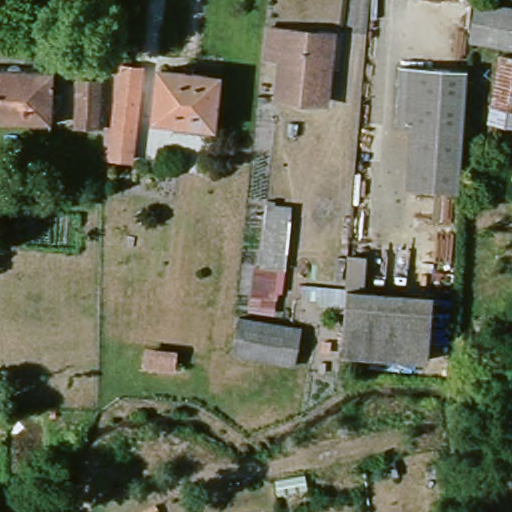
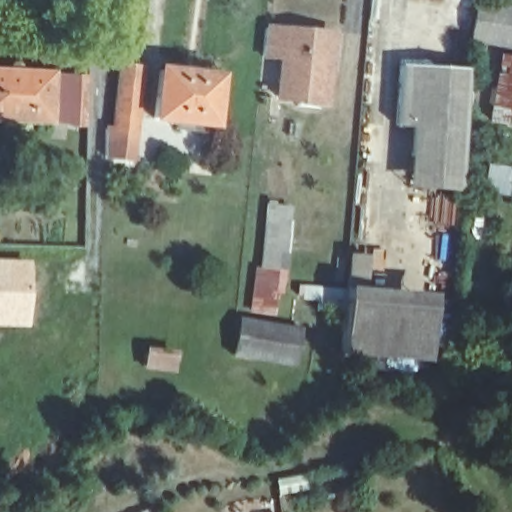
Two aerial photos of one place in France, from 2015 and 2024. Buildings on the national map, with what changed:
unchanged [(512,9),(512,48),(474,40),(482,2),(512,9)]
unchanged [(285,90),(266,89),(272,25),(290,26),(285,90)]
unchanged [(290,26),(338,30),(332,94),(285,90),(290,26)]
unchanged [(512,128),(483,122),(498,55),(512,58),(512,128)]
unchanged [(463,137),(462,157),(406,157),(408,125),(394,125),(399,65),(468,68),(463,137)]
unchanged [(135,70),(127,136),(120,135),(119,147),(104,146),(113,67),(135,70)]
unchanged [(208,76),(203,123),(145,119),(150,70),(208,76)]
unchanged [(51,124),(0,123),(0,71),(53,72),(51,124)]
unchanged [(71,77),(100,78),(98,131),(68,129),(71,77)]
unchanged [(462,157),(459,190),(405,187),(406,157),(462,157)]
unchanged [(264,265),(267,250),(269,212),(294,212),(292,251),(285,295),(279,295),(278,319),(253,317),(257,265),(264,265)]
new [(28,259),(26,327),(0,326),(0,258),(28,259)]
unchanged [(426,296),(424,345),(345,342),(346,293),(426,296)]
unchanged [(253,317),(278,319),(298,321),(295,362),(232,355),(237,315),(253,317)]
unchanged [(180,356),(180,371),(148,367),(150,352),(180,355),(180,356)]

